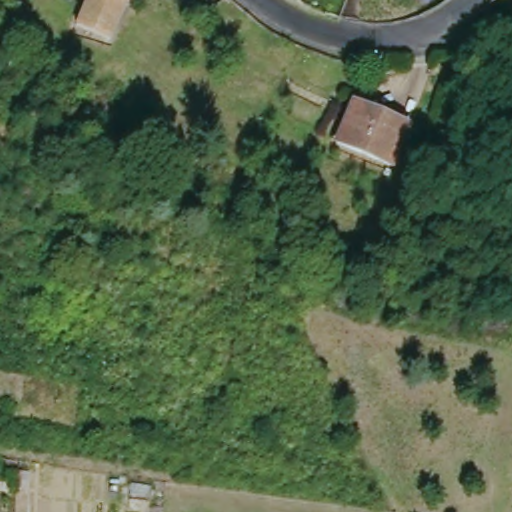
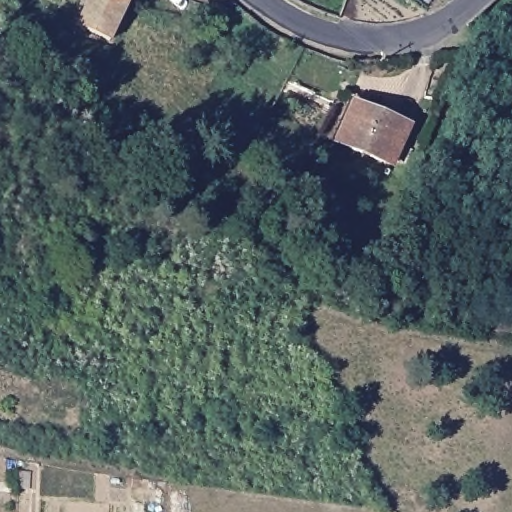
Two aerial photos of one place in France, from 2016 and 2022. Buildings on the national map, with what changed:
unchanged [(71,25),(82,0),(123,0),(118,11),(105,41),(71,25)]
unchanged [(404,123),(389,160),(335,137),(351,100),(404,123)]

